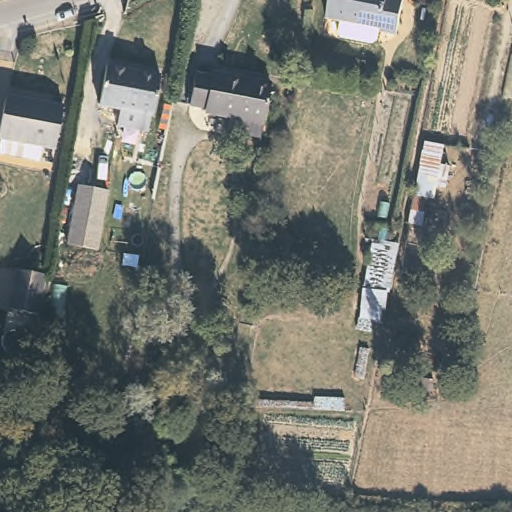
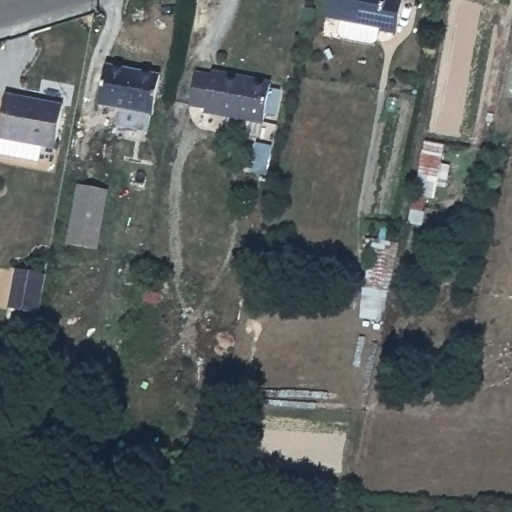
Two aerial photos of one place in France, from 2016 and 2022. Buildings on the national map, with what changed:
unchanged [(379,34),(377,46),(374,49),(340,44),(338,40),(340,25),(325,24),(329,0),(402,0),(396,37),(379,34)]
unchanged [(156,79),(149,118),(144,118),(141,134),(122,130),(126,114),(94,109),(101,70),(156,79)]
unchanged [(225,136),(228,120),(204,116),(204,110),(190,109),(195,79),(209,81),(210,76),(267,86),(260,126),(258,141),(225,136)]
unchanged [(59,108),(51,153),(38,150),(35,165),(0,158),(0,110),(2,98),(59,108)]
unchanged [(107,189),(96,247),(67,242),(79,183),(107,189)]
unchanged [(48,270),(40,311),(9,307),(17,265),(48,270)]

